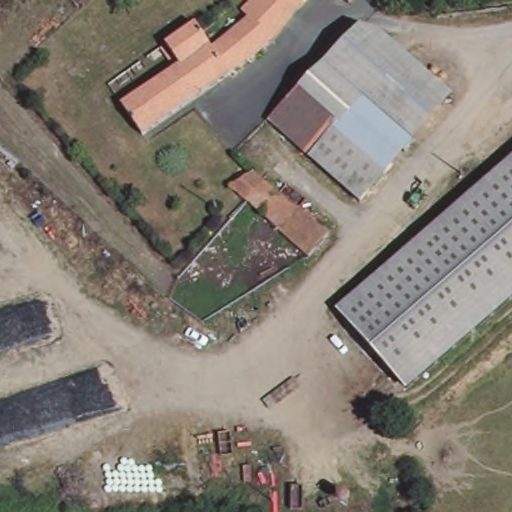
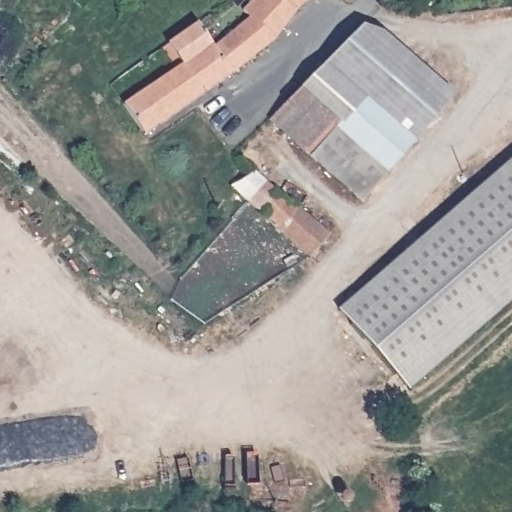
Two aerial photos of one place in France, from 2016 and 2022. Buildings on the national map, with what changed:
unchanged [(242,11),(252,0),(307,0),(297,10),(277,40),(263,55),(239,28),(250,19),(242,11)]
unchanged [(353,0),(350,5),(344,0),(353,0)]
unchanged [(129,114),(145,100),(184,70),(164,47),(164,46),(192,22),(202,31),(214,45),(225,35),(238,25),(263,55),(264,55),(257,65),(153,148),(126,116),(127,116),(129,114)]
unchanged [(383,32),(454,96),(362,201),(270,118),(362,26),(383,32)]
unchanged [(512,158),(512,305),(405,398),(334,313),(512,158)]
unchanged [(239,197),(256,175),(324,229),(304,251),(302,250),(289,239),(239,197)]

